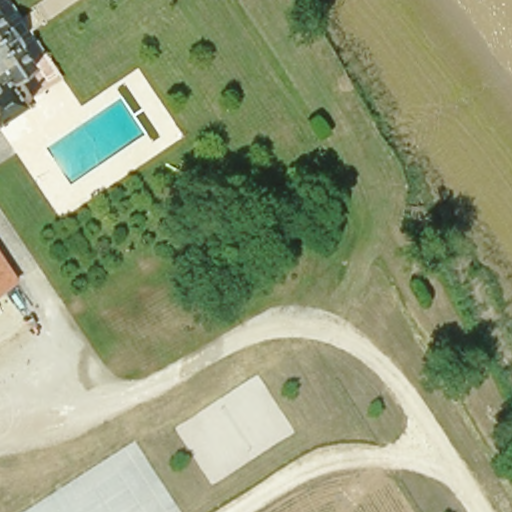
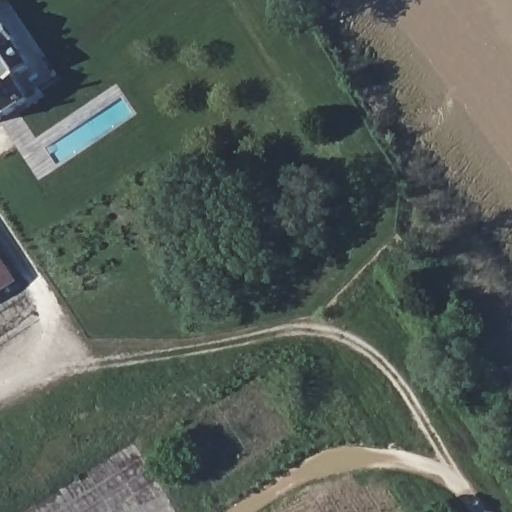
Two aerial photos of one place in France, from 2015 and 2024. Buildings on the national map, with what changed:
unchanged [(57,75),(25,96),(13,76),(32,64),(0,16),(0,0),(9,0),(57,75)]
unchanged [(13,76),(25,96),(0,111),(0,16),(32,64),(13,76)]
unchanged [(0,253),(17,278),(0,289),(0,253)]

